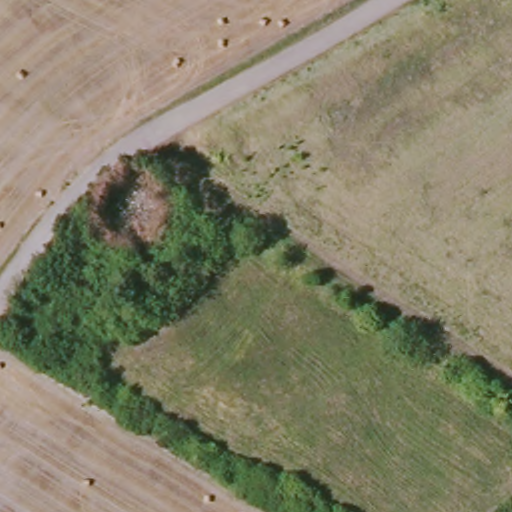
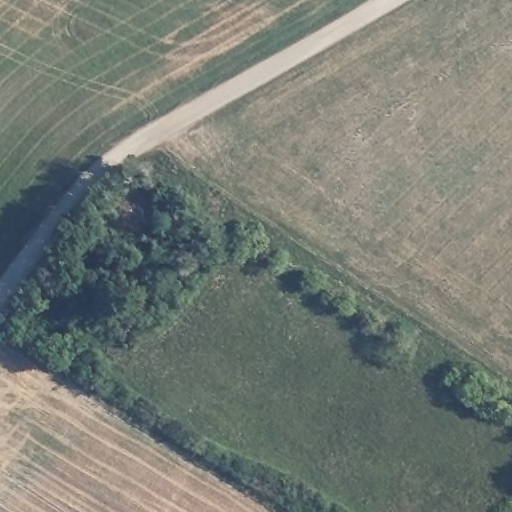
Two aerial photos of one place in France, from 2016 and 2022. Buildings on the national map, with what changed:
unchanged [(135,186),(156,204),(130,231),(108,215),(135,186)]

